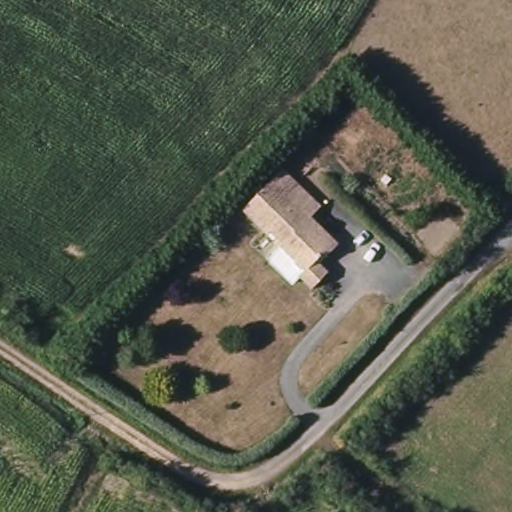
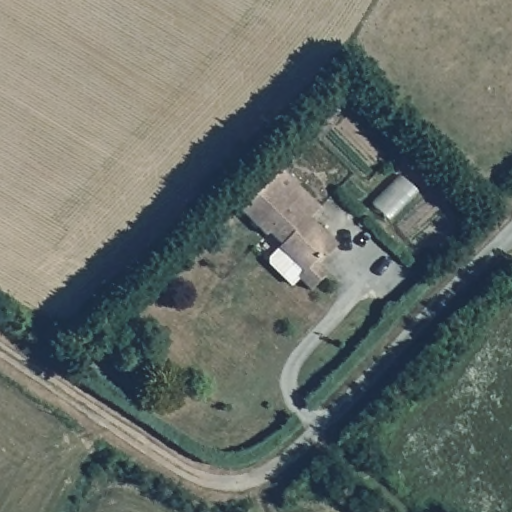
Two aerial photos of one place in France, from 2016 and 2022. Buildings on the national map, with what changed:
unchanged [(282,171),(321,209),(311,219),(339,245),(327,259),(324,255),(320,260),(320,264),(330,273),(314,290),(301,278),(306,272),(281,249),(283,246),(270,234),(267,237),(242,213),(282,171)]

